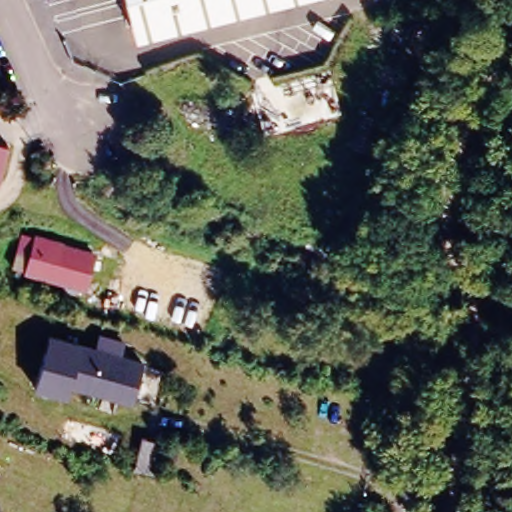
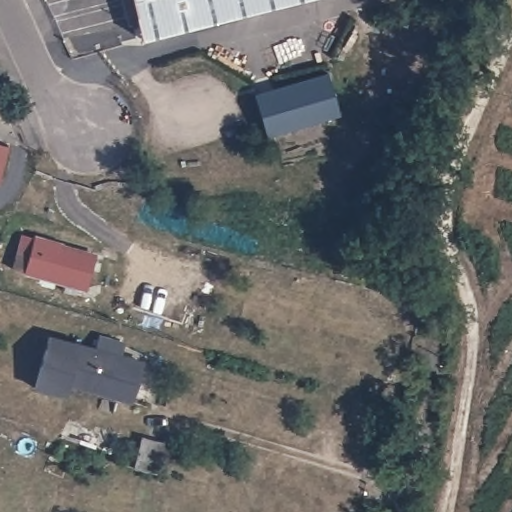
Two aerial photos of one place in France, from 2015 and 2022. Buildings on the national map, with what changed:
unchanged [(132,0),(297,0),(141,39),(132,0)]
new [(264,133),(252,96),(332,75),(344,111),(264,133)]
unchanged [(0,171),(0,142),(6,144),(0,171)]
unchanged [(55,245),(91,255),(81,290),(20,272),(6,268),(16,232),(30,236),(56,244),(55,245)]
unchanged [(38,377),(50,331),(97,349),(101,336),(123,342),(120,355),(143,362),(131,403),(38,377)]
unchanged [(160,434),(175,439),(169,462),(155,459),(150,475),(128,470),(131,456),(119,453),(124,433),(136,436),(157,442),(160,434)]

